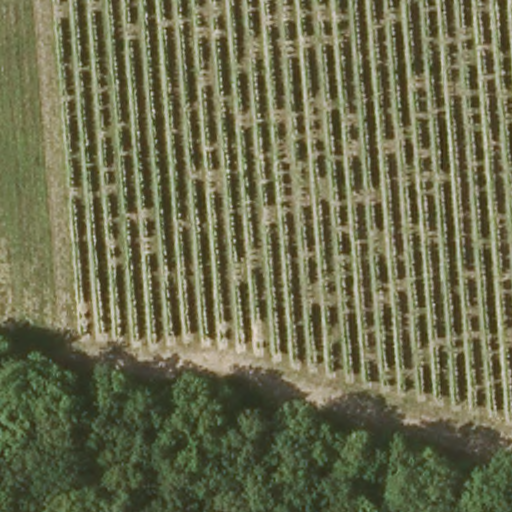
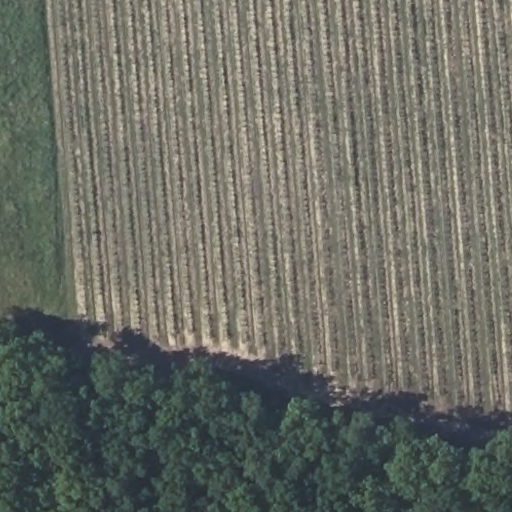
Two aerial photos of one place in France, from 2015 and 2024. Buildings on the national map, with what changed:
unchanged [(205,380),(223,382),(222,396),(221,403),(203,401),(204,391),(205,380)]

